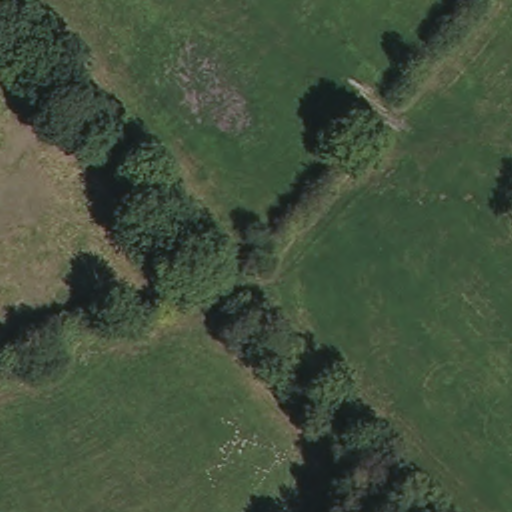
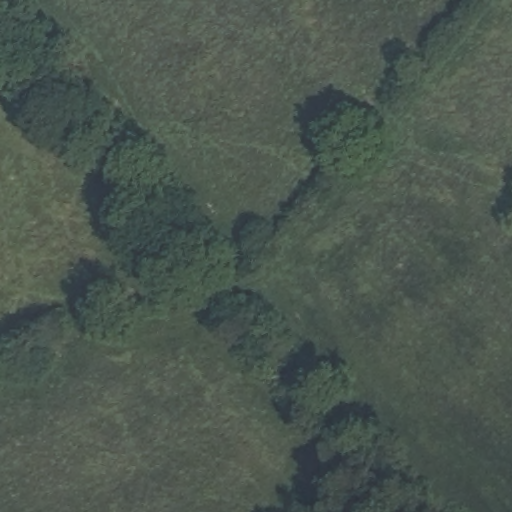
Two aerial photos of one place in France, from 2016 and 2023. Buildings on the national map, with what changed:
[]

